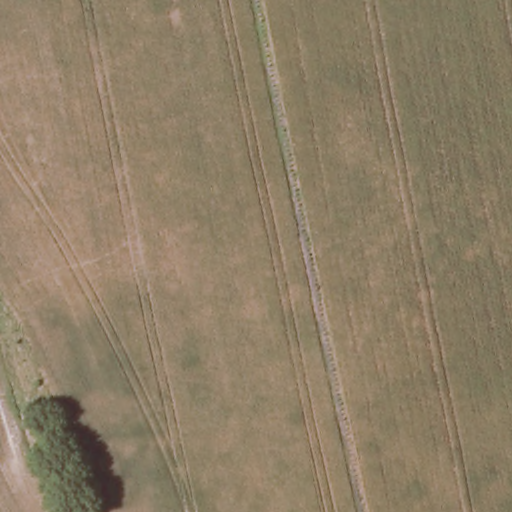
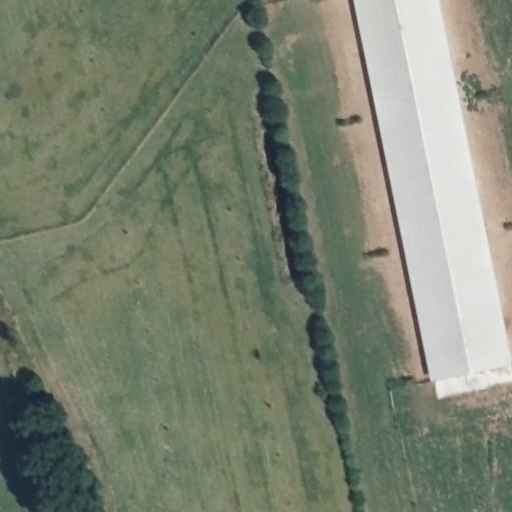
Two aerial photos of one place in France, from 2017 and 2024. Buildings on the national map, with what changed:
new [(512,301),(512,366),(446,379),(368,0),(450,0),(512,301)]

